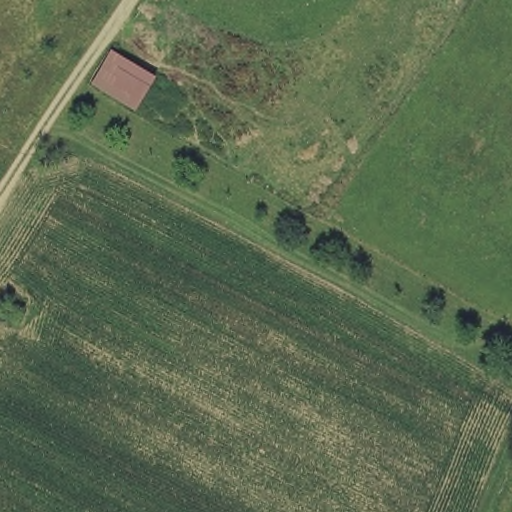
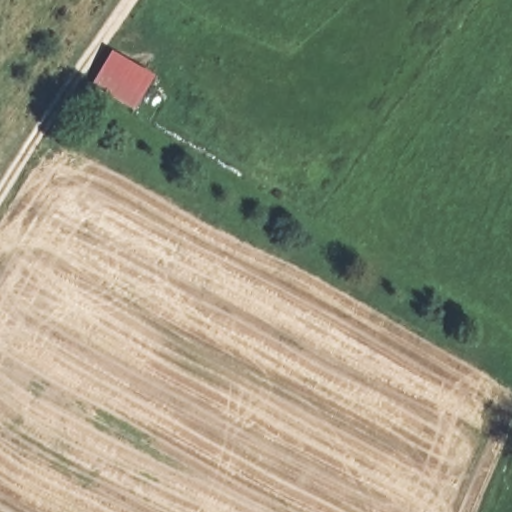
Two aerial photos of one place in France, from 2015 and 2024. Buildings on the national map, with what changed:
unchanged [(155,76),(133,112),(94,87),(117,52),(155,76)]

